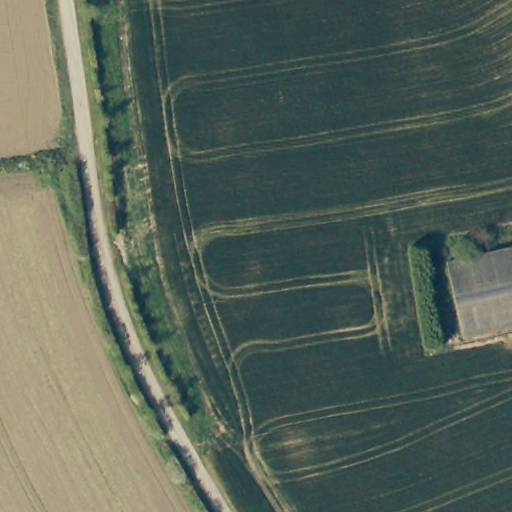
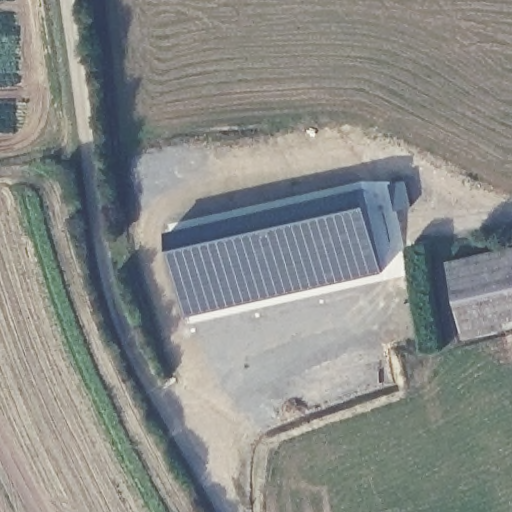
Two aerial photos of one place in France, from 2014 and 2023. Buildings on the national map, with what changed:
new [(383,272),(189,315),(170,232),(365,187),(383,272)]
unchanged [(512,326),(467,336),(449,261),(512,247),(512,326)]

